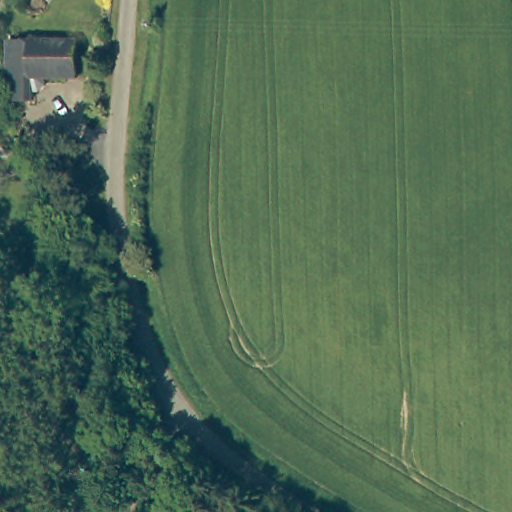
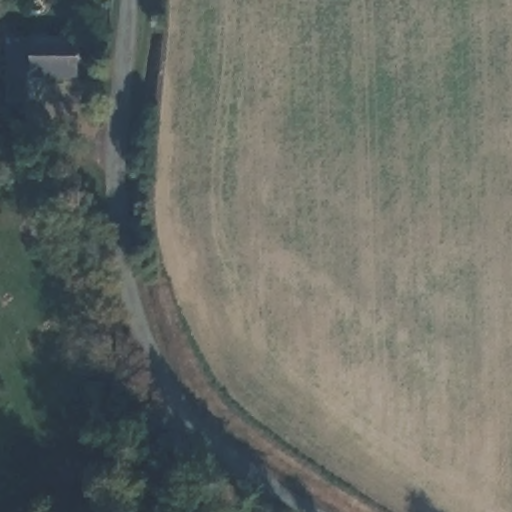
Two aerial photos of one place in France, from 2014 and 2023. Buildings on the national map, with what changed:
unchanged [(51,0),(52,1),(52,9),(47,14),(38,15),(34,11),(31,5),(32,0),(51,0)]
unchanged [(77,35),(77,74),(51,74),(51,80),(44,87),(37,87),(38,97),(16,99),(12,40),(77,35)]

